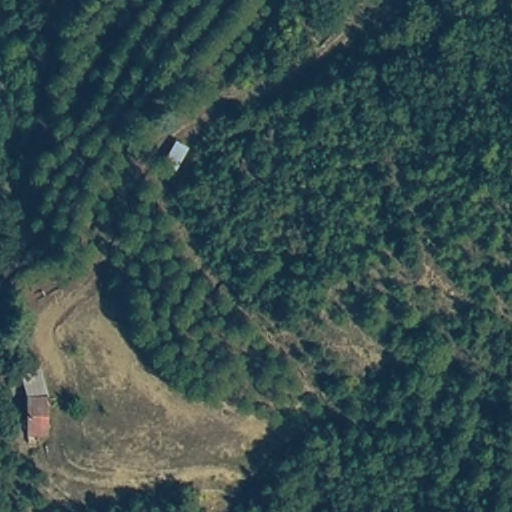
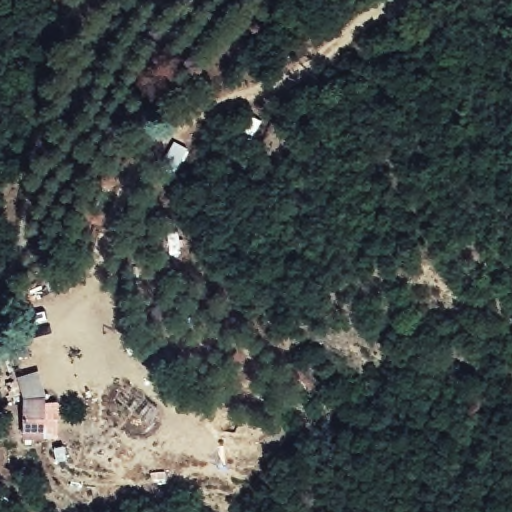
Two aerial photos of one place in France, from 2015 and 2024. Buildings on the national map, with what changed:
unchanged [(187,154),(175,175),(161,167),(174,146),(187,154)]
unchanged [(20,381),(40,374),(44,401),(44,442),(23,441),(24,403),(20,381)]

